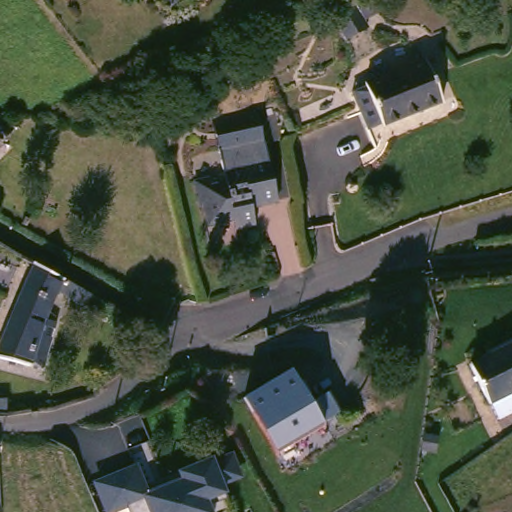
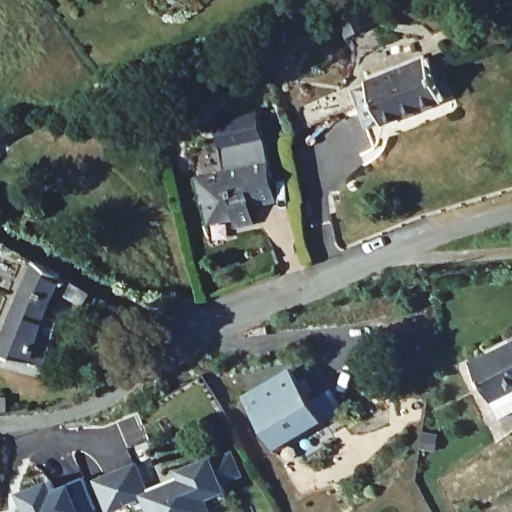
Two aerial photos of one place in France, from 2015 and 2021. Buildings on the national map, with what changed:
unchanged [(361,91),(374,86),(372,82),(434,57),(452,100),(391,124),(389,120),(376,126),(361,91)]
unchanged [(22,126),(0,153),(0,108),(22,126)]
unchanged [(259,206),(265,224),(244,230),(240,219),(219,225),(212,204),(209,204),(201,179),(232,170),(231,166),(249,160),(244,146),(270,138),(289,197),(259,206)]
unchanged [(92,301),(66,287),(54,313),(65,318),(52,359),(38,355),(37,359),(3,349),(44,255),(100,287),(92,301)]
unchanged [(483,353),(512,339),(512,407),(509,409),(502,393),(483,353)]
unchanged [(311,398),(324,392),(336,415),(271,449),(238,393),(287,365),(311,398)]
unchanged [(18,391),(18,409),(0,408),(0,390),(18,391)]
unchanged [(125,505),(110,512),(103,512),(91,482),(132,464),(143,491),(176,476),(175,471),(212,456),(214,459),(231,452),(241,481),(222,488),(224,494),(207,502),(211,512),(128,512),(125,505)]
new [(52,494),(68,487),(83,479),(95,511),(93,512),(27,512),(20,494),(47,481),(52,494)]

